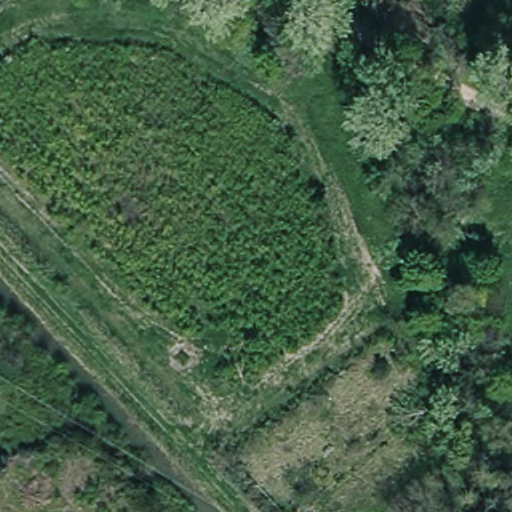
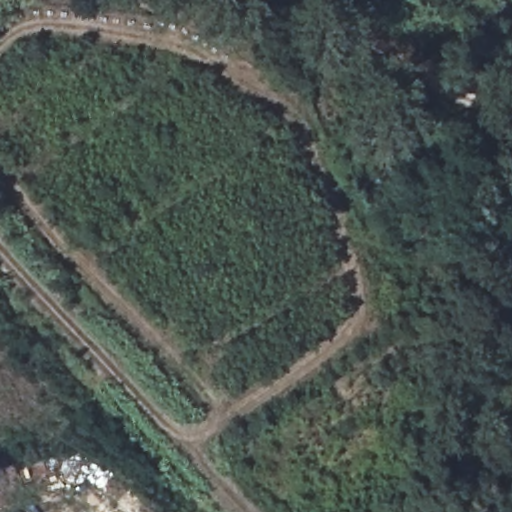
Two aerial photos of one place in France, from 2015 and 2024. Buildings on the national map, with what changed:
[]

